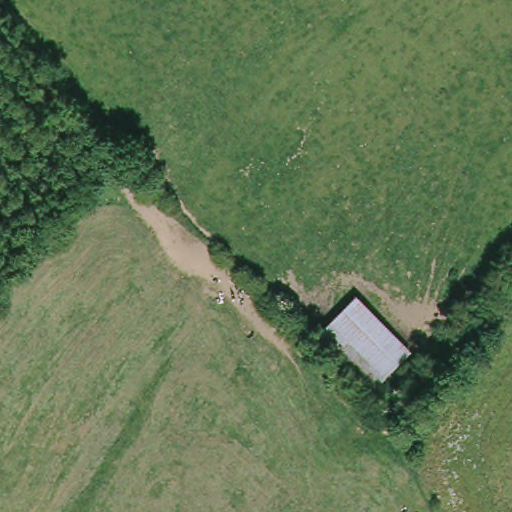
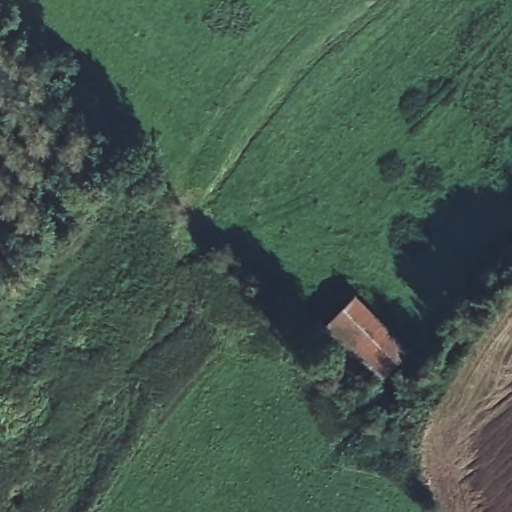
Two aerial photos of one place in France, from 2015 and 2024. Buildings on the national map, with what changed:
unchanged [(358,291),(416,352),(370,393),(312,336),(358,291)]

